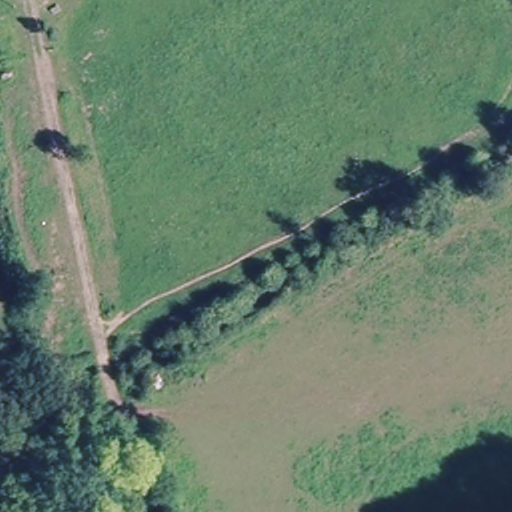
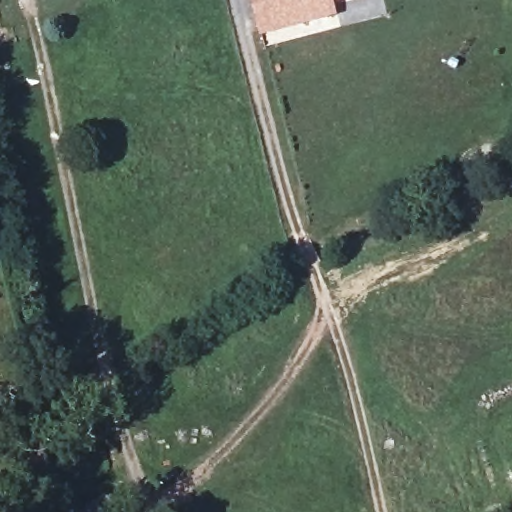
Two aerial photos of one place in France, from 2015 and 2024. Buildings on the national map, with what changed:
new [(336,4),(338,16),(260,35),(251,0),(349,0),(336,4)]
new [(89,512),(85,512),(88,510),(89,512)]

